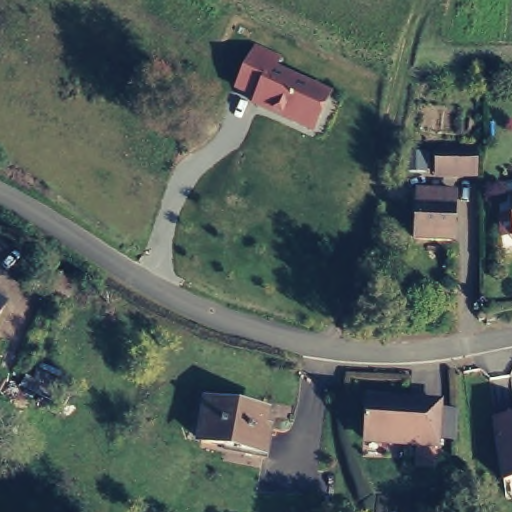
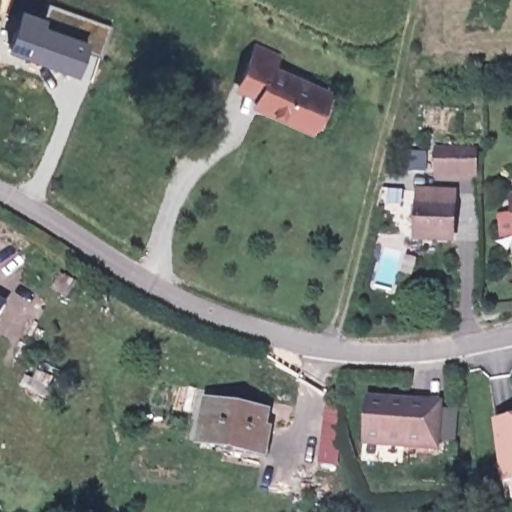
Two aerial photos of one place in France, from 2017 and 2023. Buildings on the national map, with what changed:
new [(84,52),(77,74),(8,50),(21,10),(45,19),(50,6),(111,29),(100,58),(84,52)]
unchanged [(316,136),(251,107),(254,99),(235,90),(256,42),(284,54),(278,67),(333,91),(316,136)]
unchanged [(474,174),(438,172),(439,144),(474,146),(474,174)]
unchanged [(456,189),(452,238),(424,238),(425,215),(416,215),(418,200),(419,187),(456,189)]
unchanged [(511,231),(506,193),(512,192),(512,237),(511,234),(511,231)]
unchanged [(10,306),(0,322),(0,299),(10,306)]
unchanged [(414,468),(416,454),(366,449),(367,440),(357,439),(366,390),(443,397),(442,411),(459,413),(458,445),(439,443),(439,448),(437,470),(414,468)]
unchanged [(274,402),(268,455),(191,445),(201,391),(274,402)]
unchanged [(503,422),(512,421),(512,482),(509,483),(503,422)]

